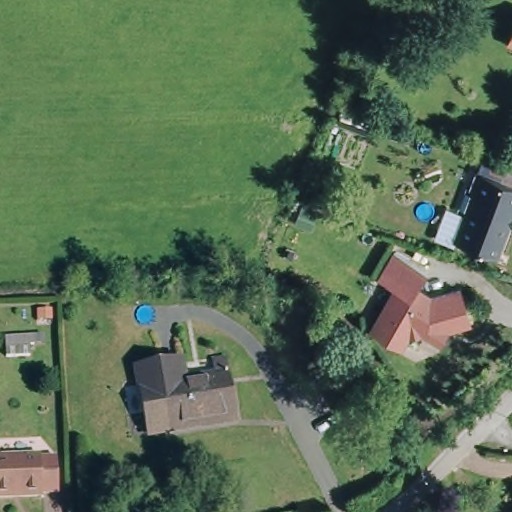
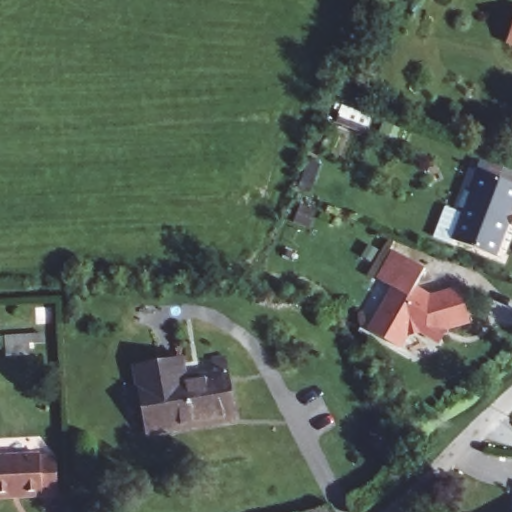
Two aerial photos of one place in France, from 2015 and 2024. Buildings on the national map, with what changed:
unchanged [(512,191),(512,201),(509,210),(506,209),(489,258),(447,242),(455,219),(451,218),(460,193),(463,194),(470,175),(512,191)]
unchanged [(422,273),(412,289),(427,299),(457,289),(469,324),(444,332),(439,342),(434,339),(429,344),(414,333),(403,339),(396,350),(366,330),(390,292),(376,282),(393,254),(422,273)]
unchanged [(194,379),(225,372),(221,359),(233,355),(251,414),(223,422),(223,427),(166,443),(144,371),(188,359),(194,379)]
unchanged [(40,458),(55,457),(58,488),(43,489),(44,494),(0,498),(0,457),(40,454),(40,458)]

